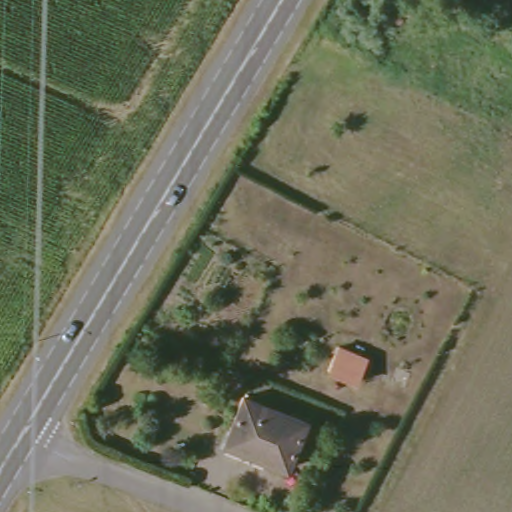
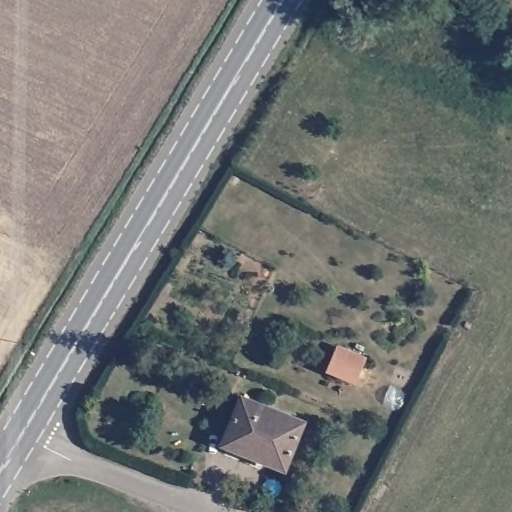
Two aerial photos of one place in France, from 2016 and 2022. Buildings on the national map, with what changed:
unchanged [(358,394),(328,380),(340,351),(371,361),(358,394)]
unchanged [(301,420),(282,465),(217,440),(235,393),(301,420)]

